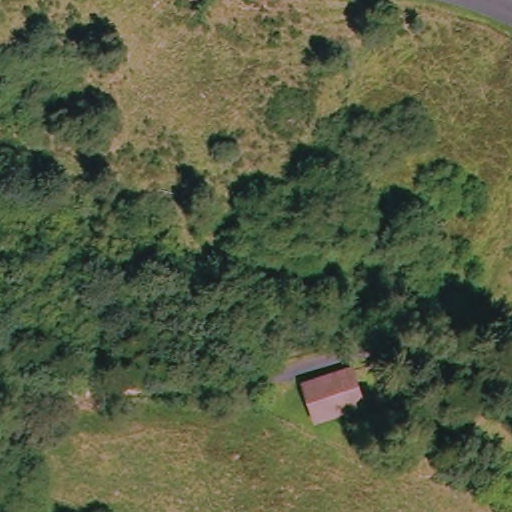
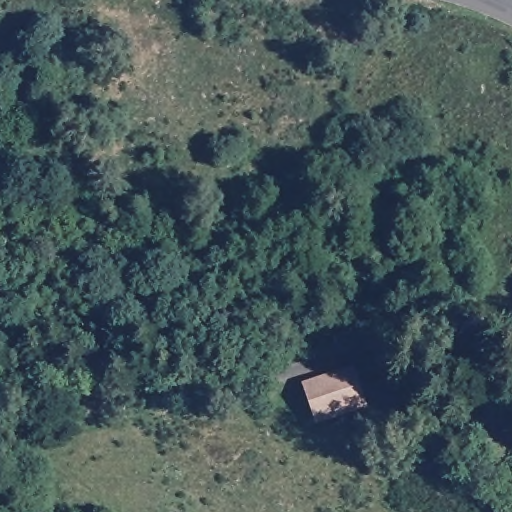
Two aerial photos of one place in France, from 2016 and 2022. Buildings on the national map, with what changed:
unchanged [(303,382),(355,366),(372,411),(317,426),(303,382)]

